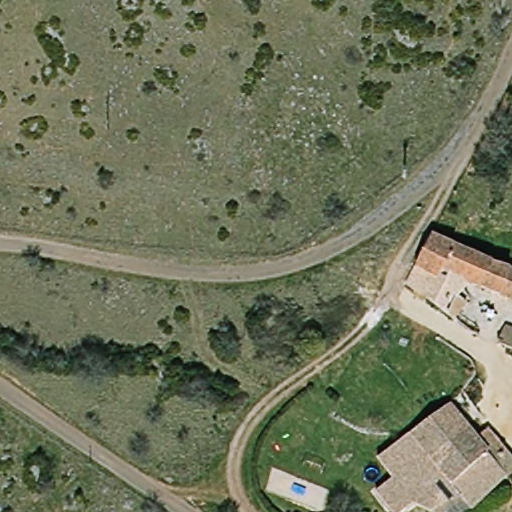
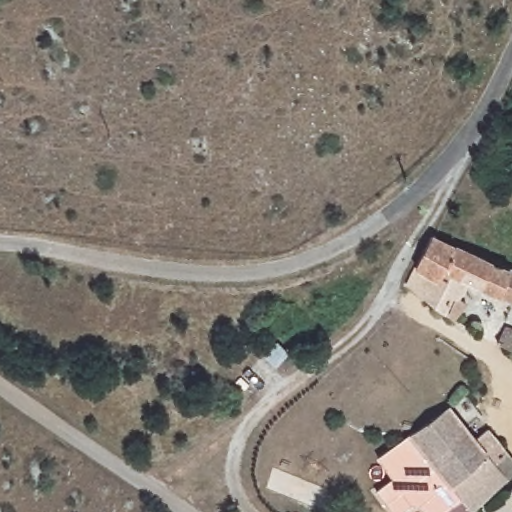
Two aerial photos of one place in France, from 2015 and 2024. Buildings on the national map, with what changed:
unchanged [(415,287),(442,240),(512,269),(512,301),(470,283),(461,297),(473,303),(468,315),(462,325),(427,303),(415,287)]
unchanged [(498,340),(510,345),(512,340),(512,351),(496,345),(475,334),(462,325),(468,315),(501,334),(498,340)]
unchanged [(415,508),(410,512),(389,512),(377,497),(397,480),(379,462),(405,438),(444,401),(473,434),(484,423),(498,438),(508,449),(494,461),(506,473),(473,506),(461,494),(442,512),(429,512),(426,511),(425,512),(418,512),(415,508)]

